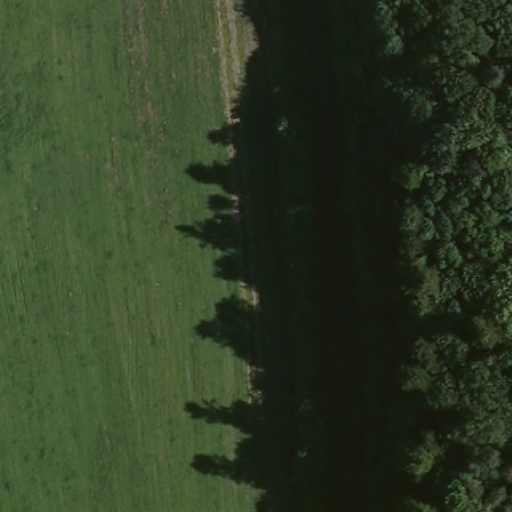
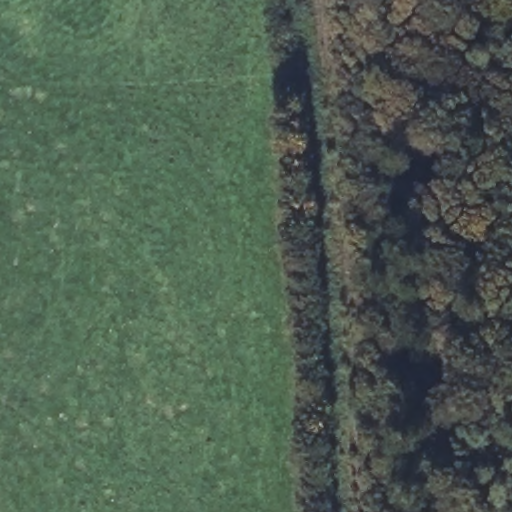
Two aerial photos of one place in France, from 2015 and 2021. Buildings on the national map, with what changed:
[]

